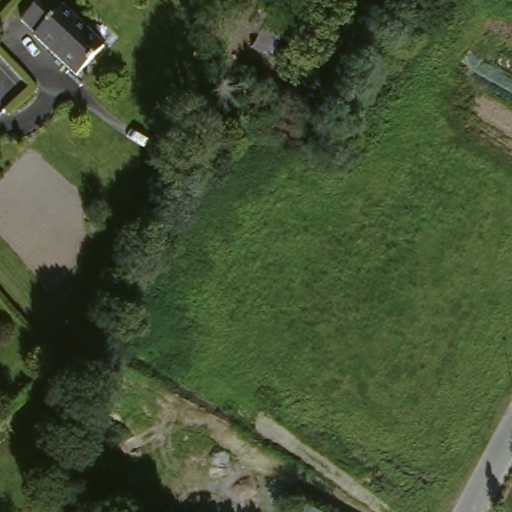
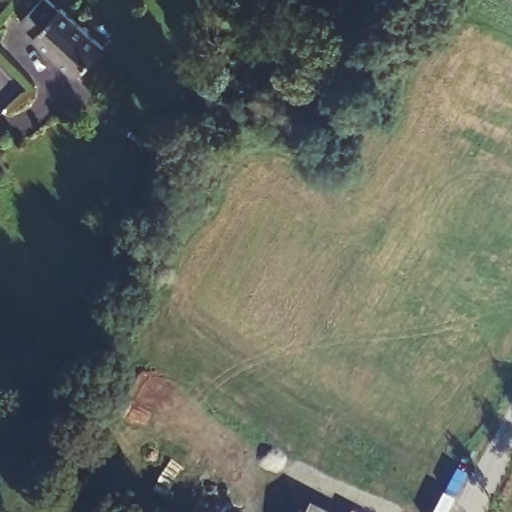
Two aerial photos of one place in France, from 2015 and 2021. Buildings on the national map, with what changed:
unchanged [(44,39),(27,25),(47,0),(52,0),(66,11),(68,9),(112,45),(86,77),(42,42),(44,39)]
unchanged [(166,140),(148,130),(161,109),(179,119),(166,140)]
unchanged [(298,508),(307,512),(296,512),(298,508)]

